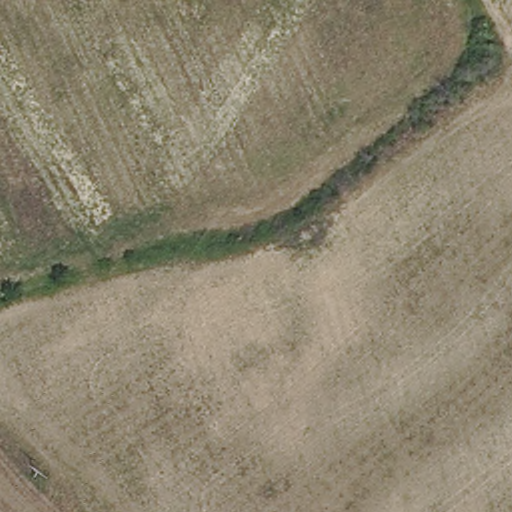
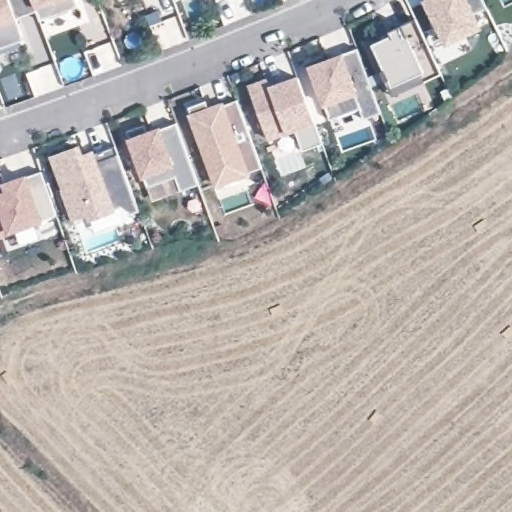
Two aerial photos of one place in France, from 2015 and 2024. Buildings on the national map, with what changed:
new [(37,12),(17,19),(25,41),(0,49),(0,0),(32,0),(37,12)]
new [(79,7),(41,21),(37,12),(32,0),(76,0),(79,7)]
new [(488,8),(473,15),(480,28),(447,44),(425,2),(430,0),(484,0),(488,8)]
new [(385,82),(380,72),(385,70),(374,44),(391,36),(389,31),(416,18),(442,75),(423,84),(393,98),(385,82)]
new [(341,57),(341,55),(358,49),(382,113),(364,120),(360,109),(330,120),(311,67),(330,60),(341,57)]
new [(268,81),(271,88),(299,78),(324,144),(303,152),(295,130),(268,139),(249,89),(268,81)]
new [(207,102),(210,111),(238,101),(263,168),(217,185),(189,108),(207,102)]
new [(138,122),(143,136),(177,123),(199,185),(184,191),(178,176),(147,188),(125,126),(138,122)]
new [(79,149),(83,158),(116,147),(140,211),(131,214),(122,207),(91,219),(89,213),(74,218),(65,193),(66,193),(54,159),(79,149)]
new [(3,175),(6,184),(42,171),(57,216),(0,236),(0,175),(3,175)]

